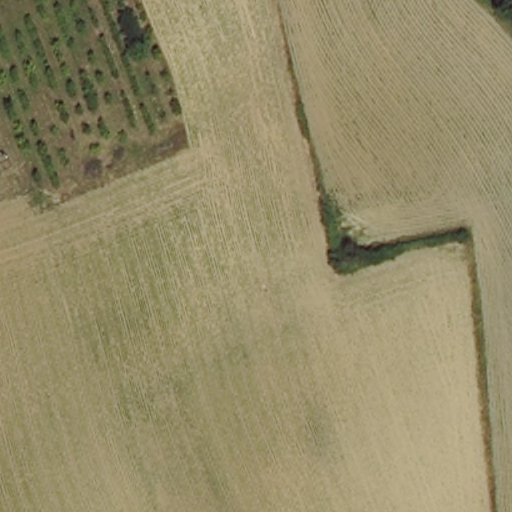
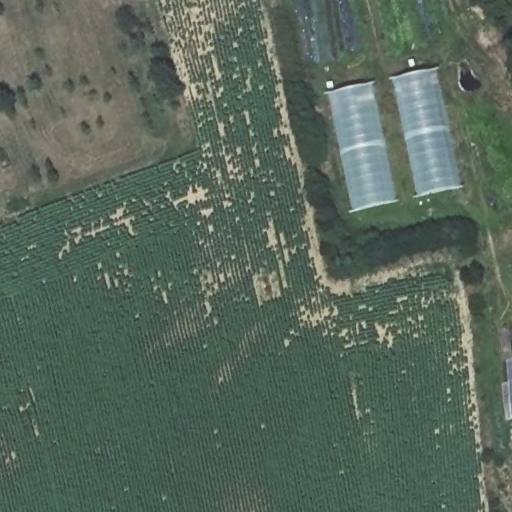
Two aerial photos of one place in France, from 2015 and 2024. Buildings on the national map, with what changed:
new [(440,72),(464,189),(417,200),(393,81),(440,72)]
new [(400,202),(353,213),(329,94),(375,86),(400,202)]

